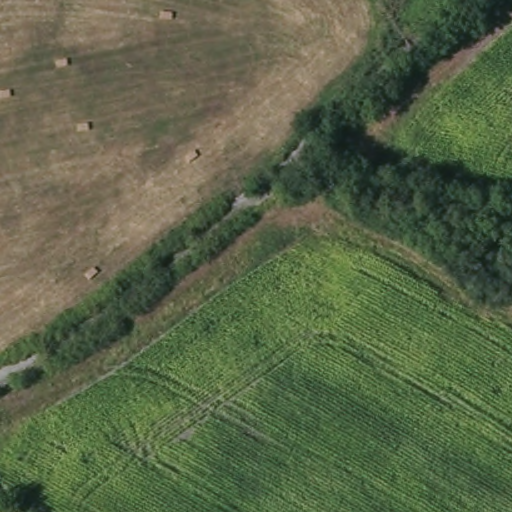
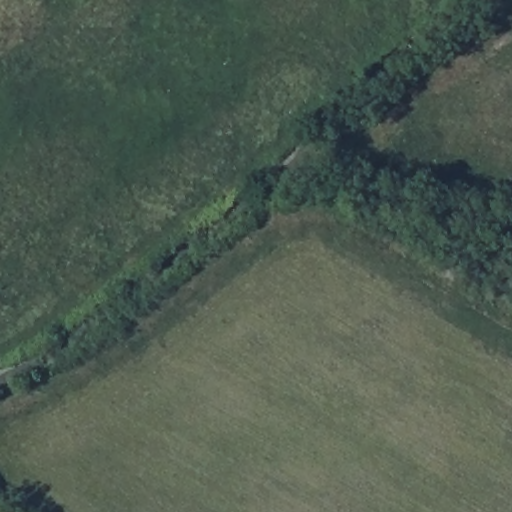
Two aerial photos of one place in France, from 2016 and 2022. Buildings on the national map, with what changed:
[]

